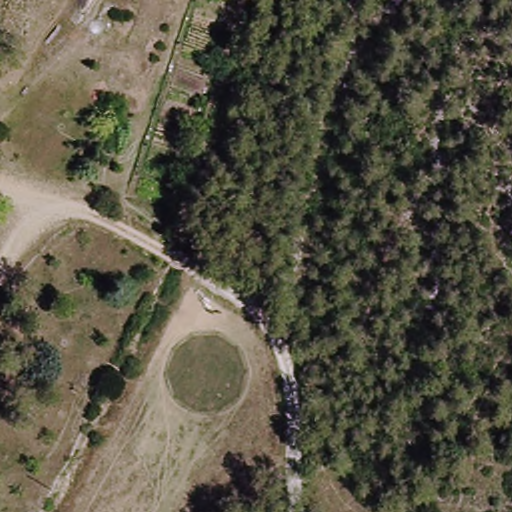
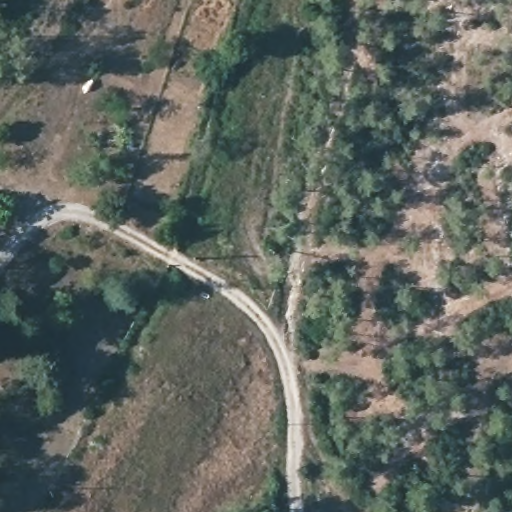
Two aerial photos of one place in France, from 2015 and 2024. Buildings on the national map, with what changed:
unchanged [(235,226),(240,212),(258,218),(253,230),(235,226)]

